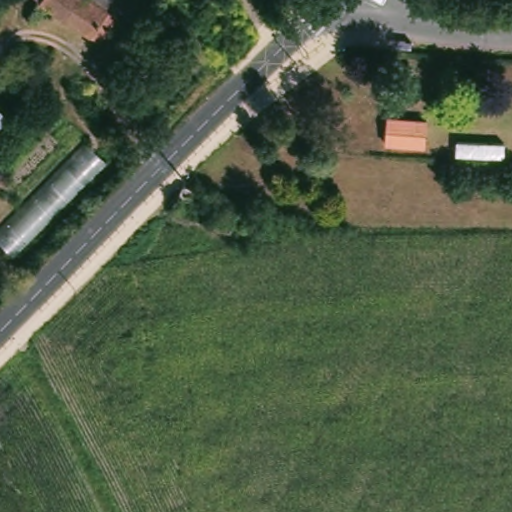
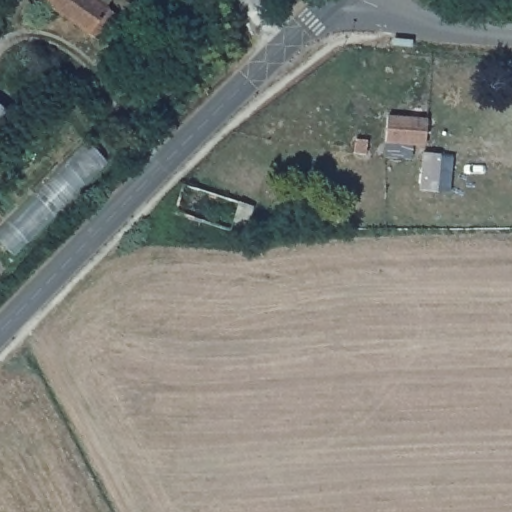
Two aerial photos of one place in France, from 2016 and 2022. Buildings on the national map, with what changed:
unchanged [(117,16),(98,42),(40,0),(94,0),(117,16)]
unchanged [(0,19),(0,7),(6,12),(0,19)]
unchanged [(0,110),(7,115),(0,125),(0,110)]
unchanged [(426,123),(425,147),(383,144),(387,121),(426,123)]
unchanged [(0,245),(0,222),(84,139),(104,165),(11,257),(0,245)]
unchanged [(261,194),(252,212),(235,208),(231,219),(177,200),(191,171),(261,194)]

